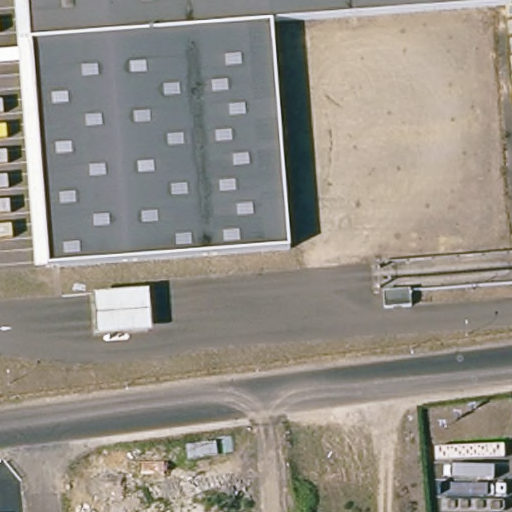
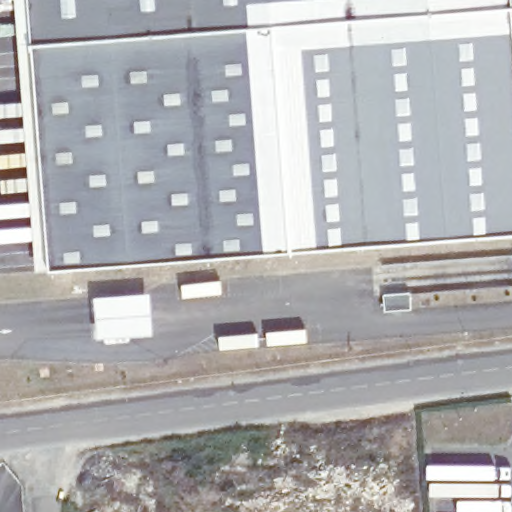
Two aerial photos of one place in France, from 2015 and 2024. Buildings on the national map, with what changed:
unchanged [(50,263),(37,264),(17,4),(16,0),(28,0),(28,3),(31,42),(31,43),(31,44),(32,43),(50,263)]
unchanged [(273,22),(292,244),(50,263),(32,43),(31,43),(31,42),(28,3),(28,0),(509,0),(509,5),(273,22)]
new [(512,230),(292,244),(273,22),(509,5),(512,39),(512,230)]
unchanged [(154,332),(99,336),(96,295),(151,291),(154,332)]

